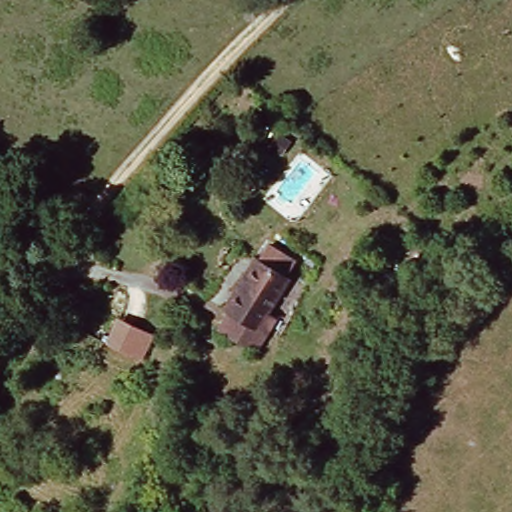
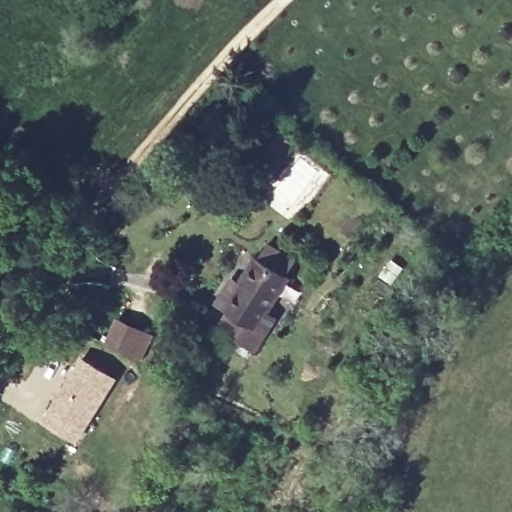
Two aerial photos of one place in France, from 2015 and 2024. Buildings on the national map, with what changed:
unchanged [(248,359),(214,335),(225,318),(218,313),(251,265),(256,267),(265,252),(292,270),(282,284),(285,289),(266,315),(275,321),(265,334),(248,359)]
new [(80,357),(115,379),(75,442),(40,419),(80,357)]

